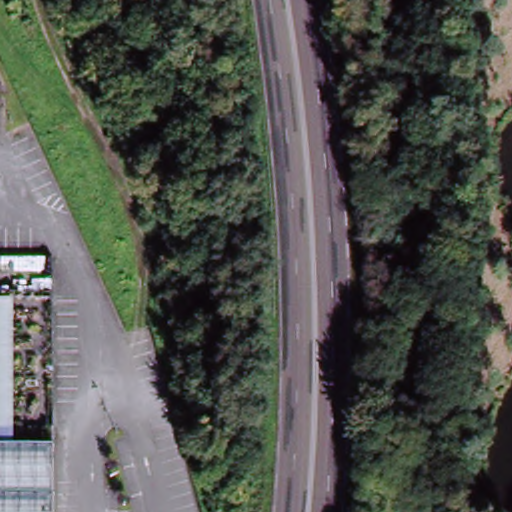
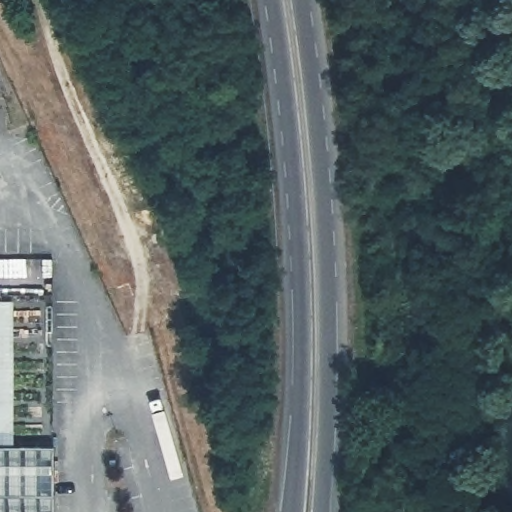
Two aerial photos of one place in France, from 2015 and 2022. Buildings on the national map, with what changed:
unchanged [(52,512),(0,512),(0,441),(52,441),(52,512)]

